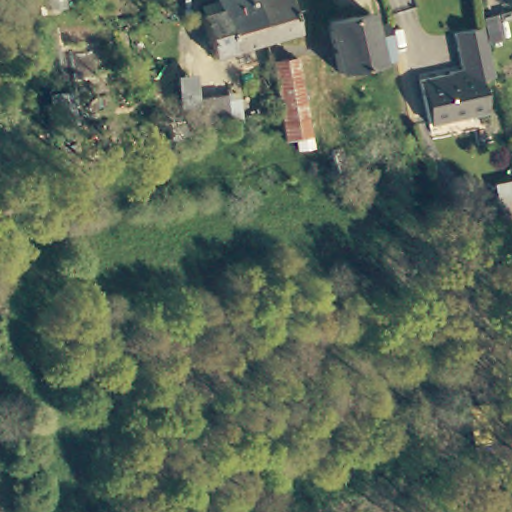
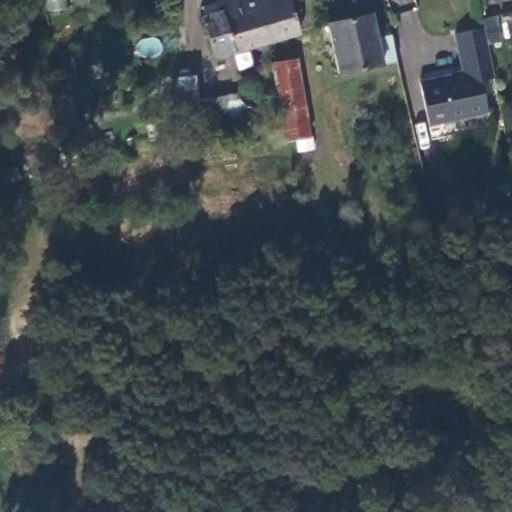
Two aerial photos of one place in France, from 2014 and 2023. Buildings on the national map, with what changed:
unchanged [(267,41),(212,54),(202,12),(219,9),(216,0),(255,0),(267,41)]
unchanged [(302,32),(267,41),(255,0),(295,0),(302,32)]
unchanged [(337,75),(325,24),(366,14),(370,28),(385,25),(392,59),(375,62),(376,66),(337,75)]
unchanged [(481,115),(428,127),(417,79),(462,71),(456,30),(483,26),(492,77),(472,80),(481,115)]
unchanged [(310,138),(282,142),(279,118),(270,66),(300,61),(310,138)]
unchanged [(230,128),(176,136),(175,126),(182,125),(181,117),(178,117),(175,92),(192,90),(196,106),(226,102),(230,128)]

